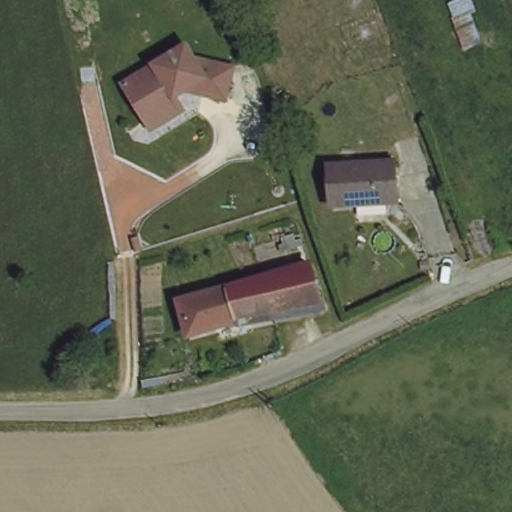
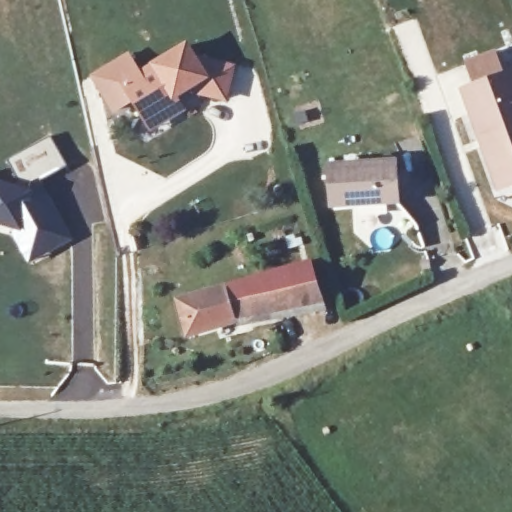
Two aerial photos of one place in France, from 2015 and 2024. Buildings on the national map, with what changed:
unchanged [(145,124),(137,110),(118,79),(181,41),(189,54),(227,64),(219,95),(180,85),(170,91),(177,105),(145,124)]
new [(512,69),(512,187),(496,192),(459,89),(512,69)]
new [(50,136),(67,165),(40,180),(34,183),(31,185),(14,179),(13,177),(6,161),(50,136)]
unchanged [(399,202),(332,206),(327,162),(397,158),(399,202)]
new [(31,185),(34,183),(40,180),(74,239),(28,263),(10,232),(0,229),(0,175),(14,179),(31,185)]
unchanged [(318,297),(260,315),(199,337),(185,297),(260,271),(307,257),(318,297)]

